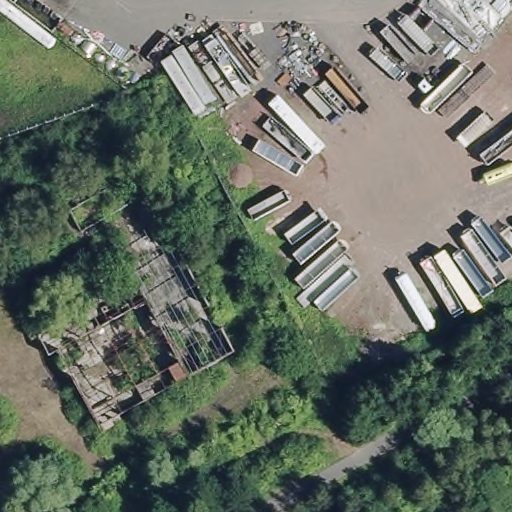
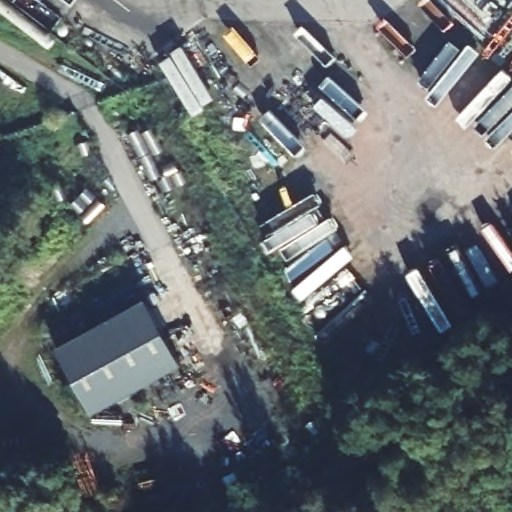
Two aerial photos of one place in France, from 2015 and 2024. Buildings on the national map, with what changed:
new [(147,303),(183,370),(94,418),(58,353),(147,303)]

